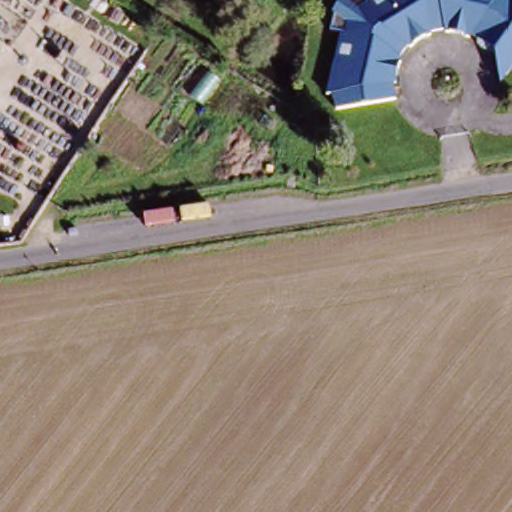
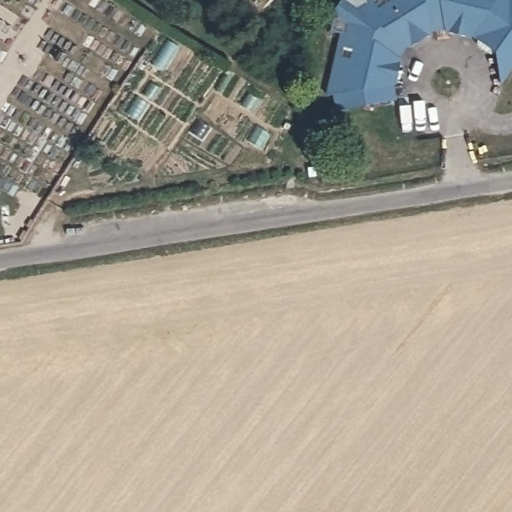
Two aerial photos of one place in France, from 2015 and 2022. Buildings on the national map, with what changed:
unchanged [(484,51),(477,46),(475,42),(475,37),(469,33),(467,36),(445,34),(445,31),(430,33),(430,36),(409,49),(407,47),(397,59),(399,60),(390,83),(387,84),(390,100),(331,115),(327,100),(316,102),(335,32),(325,29),(330,11),(328,9),(335,0),(512,0),(512,65),(500,82),(494,51),(489,52),(484,51)]

